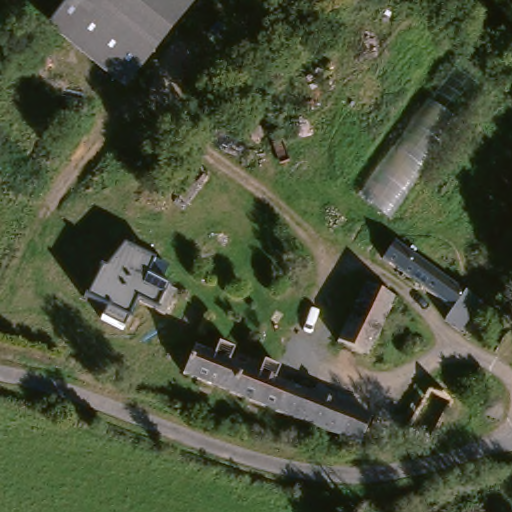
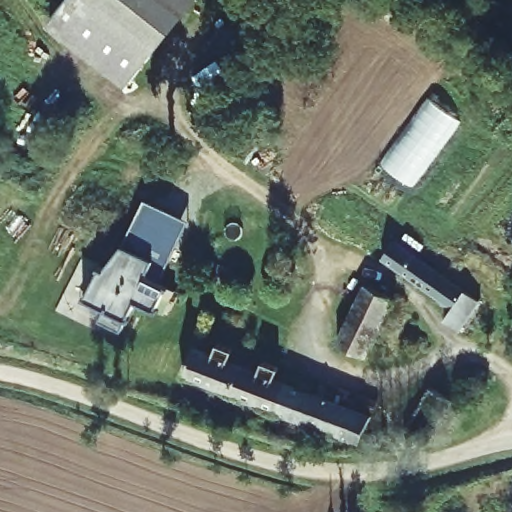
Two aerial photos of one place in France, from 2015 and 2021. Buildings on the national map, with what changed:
unchanged [(202,1),(121,97),(43,33),(69,0),(201,0),(202,1)]
unchanged [(470,57),(497,80),(381,227),(354,205),(470,57)]
new [(145,202),(188,221),(167,264),(126,243),(145,202)]
unchanged [(464,331),(449,320),(456,309),(386,260),(398,242),(411,251),(452,280),(466,290),(469,292),(484,302),(464,331)]
unchanged [(91,289),(99,274),(103,266),(106,268),(123,247),(126,243),(169,265),(161,281),(178,289),(166,313),(141,300),(131,319),(129,318),(128,320),(124,328),(103,317),(106,310),(108,307),(88,296),(91,289)]
unchanged [(389,304),(361,362),(331,347),(359,289),(389,304)]
unchanged [(181,380),(192,347),(369,417),(358,448),(181,380)]
unchanged [(427,387),(451,402),(414,459),(391,445),(427,387)]

